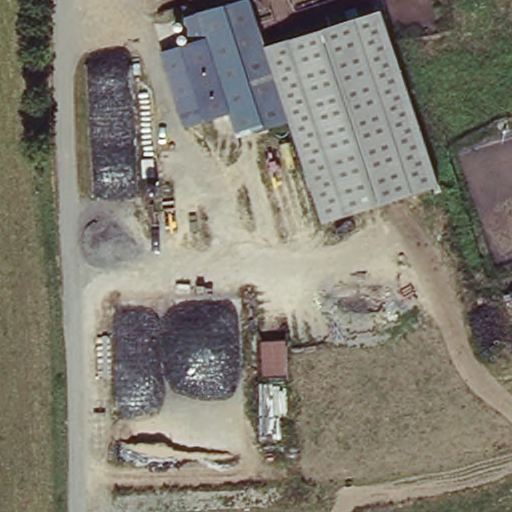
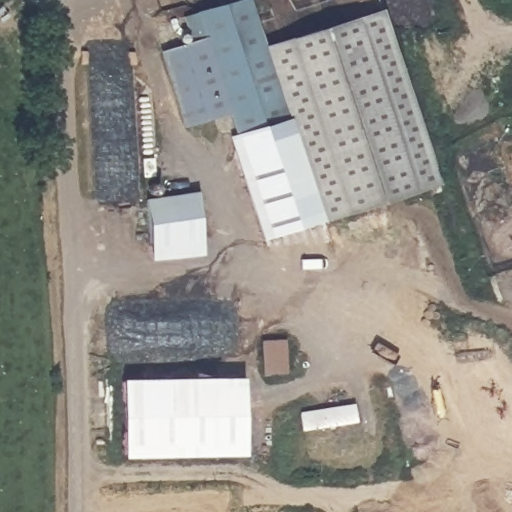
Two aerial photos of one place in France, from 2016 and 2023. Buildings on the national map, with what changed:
unchanged [(254,0),(270,49),(292,121),(287,122),(324,224),(266,244),(230,138),(235,135),(208,40),(195,44),(188,15),(235,0),(254,0)]
unchanged [(382,12),(441,185),(324,224),(287,122),(292,121),(270,49),(382,12)]
unchanged [(195,44),(208,40),(229,113),(188,122),(163,48),(194,38),(195,44)]
new [(202,195),(206,258),(153,262),(150,200),(202,195)]
new [(250,380),(251,458),(126,461),(127,383),(250,380)]

